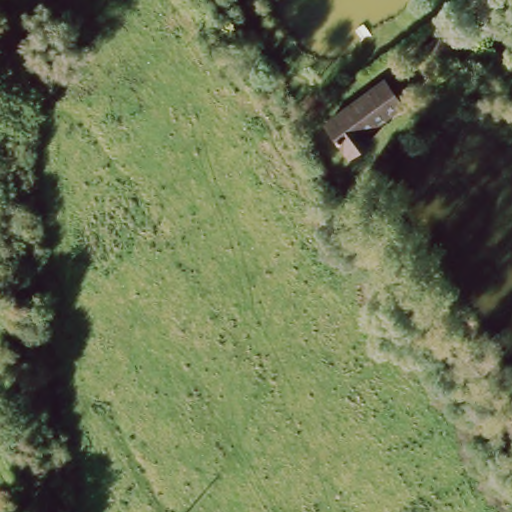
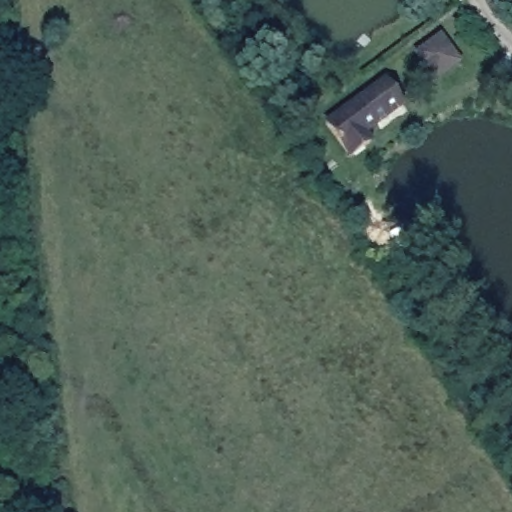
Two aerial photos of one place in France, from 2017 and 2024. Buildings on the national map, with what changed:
unchanged [(441,38),(460,65),(436,82),(416,56),(441,38)]
unchanged [(385,82),(404,106),(366,134),(371,142),(351,156),(327,125),(385,82)]

